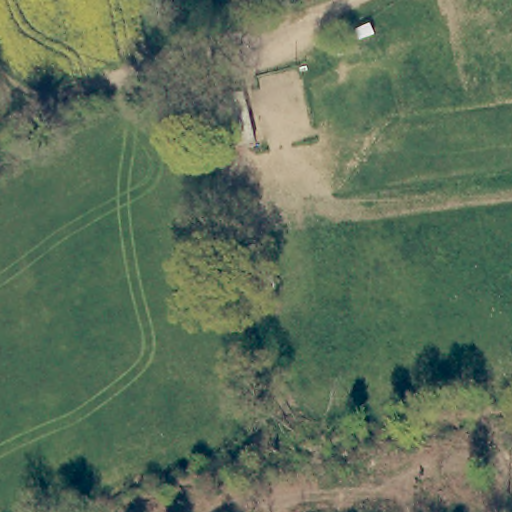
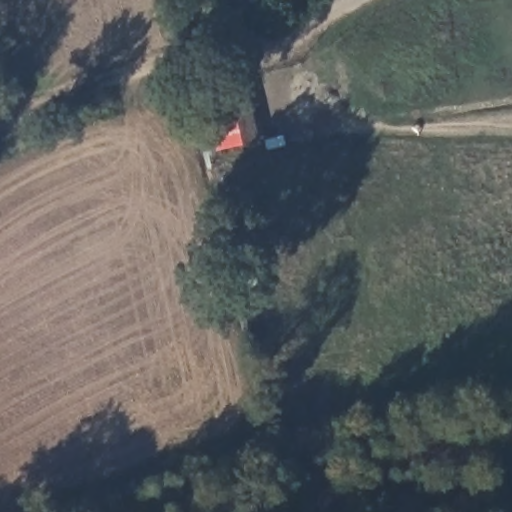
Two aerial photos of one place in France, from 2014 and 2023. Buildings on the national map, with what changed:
unchanged [(250,140),(239,90),(255,87),(264,137),(250,140)]

